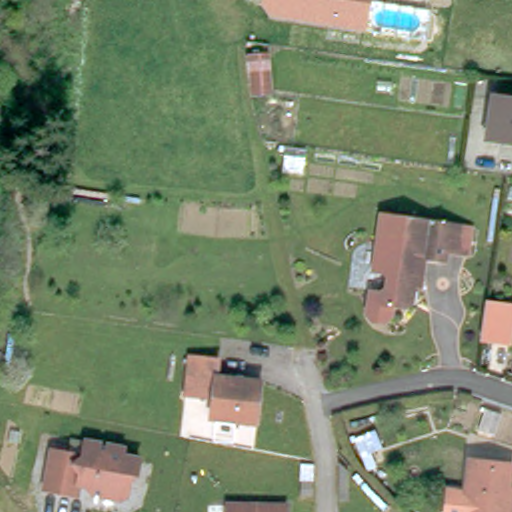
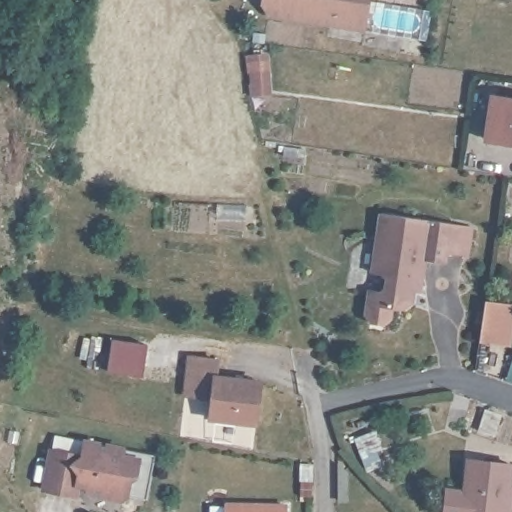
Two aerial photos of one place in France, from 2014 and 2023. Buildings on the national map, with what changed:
unchanged [(369,31),(265,14),(267,0),(373,0),(369,31)]
unchanged [(266,53),(271,90),(258,91),(253,54),(266,53)]
unchanged [(492,144),(497,101),(512,103),(512,147),(492,144)]
unchanged [(412,291),(411,304),(405,309),(390,308),(389,320),(384,324),(370,323),(365,318),(369,289),(385,290),(386,278),(381,273),(372,272),(381,213),(450,222),(471,225),(467,255),(445,253),(444,262),(424,260),(422,275),(420,292),(412,291)]
unchanged [(512,304),(512,347),(480,343),(485,300),(512,304)]
new [(147,343),(143,376),(108,371),(112,339),(147,343)]
unchanged [(254,422),(209,417),(211,397),(185,393),(189,355),(217,358),(216,374),(261,381),(259,399),(254,422)]
unchanged [(126,490),(121,494),(91,488),(86,480),(77,479),(76,491),(44,484),(52,446),(82,452),(85,436),(122,444),(121,451),(138,455),(135,470),(130,473),(126,490)]
unchanged [(510,512),(450,512),(452,489),(470,491),(474,459),(512,464),(512,495),(510,512)]
unchanged [(285,506),(285,512),(224,512),(224,505),(285,506)]

